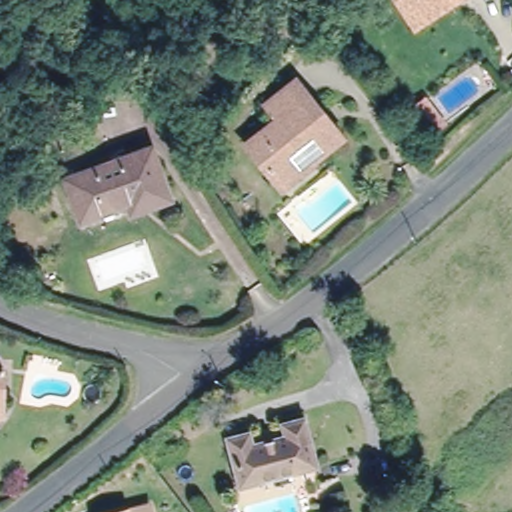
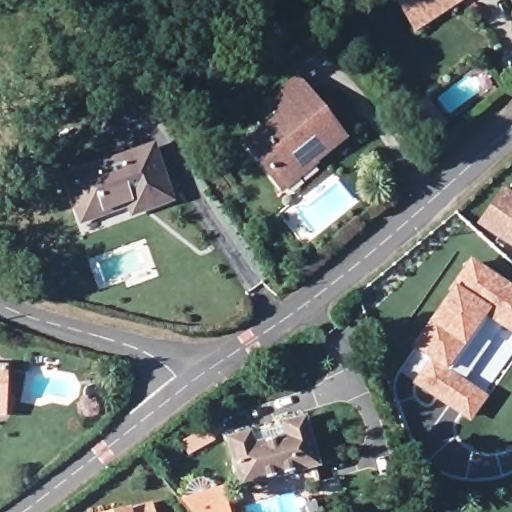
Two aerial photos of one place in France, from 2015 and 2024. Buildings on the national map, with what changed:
unchanged [(395,0),(434,0),(406,17),(395,0)]
unchanged [(406,17),(434,0),(465,0),(415,31),(406,17)]
unchanged [(278,189),(270,180),(241,145),(272,120),(261,106),(290,82),(335,139),(306,162),(307,164),(278,189)]
unchanged [(423,137),(406,115),(419,105),(436,126),(423,137)]
unchanged [(130,215),(126,205),(79,221),(65,180),(111,163),(150,149),(153,157),(168,200),(130,215)]
new [(503,196),(512,203),(512,246),(482,224),(503,196)]
new [(462,347),(448,368),(488,397),(470,422),(411,382),(426,360),(409,347),(449,292),(447,290),(470,258),(512,288),(512,338),(483,319),(462,347)]
unchanged [(3,375),(2,419),(0,419),(0,374),(3,375)]
unchanged [(244,433),(247,446),(279,438),(275,425),(300,419),(312,468),(233,489),(221,439),(244,433)]
new [(189,495),(221,486),(228,512),(194,512),(189,495)]

